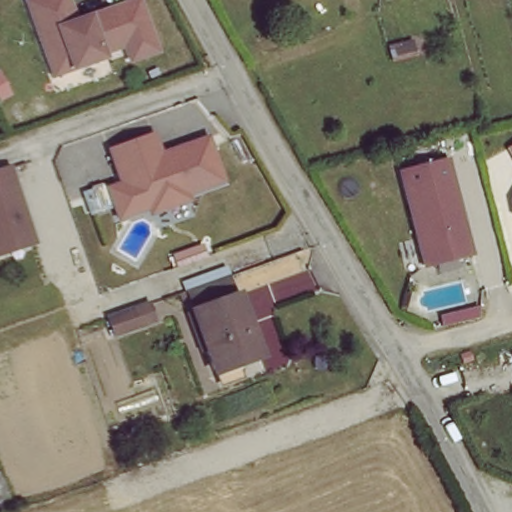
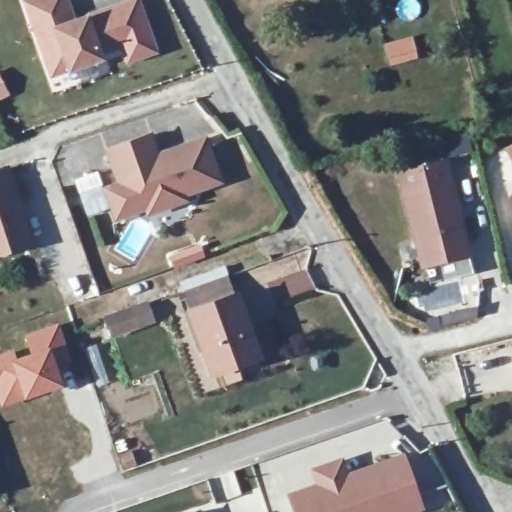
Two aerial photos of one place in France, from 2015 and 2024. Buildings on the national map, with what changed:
unchanged [(48,55),(30,0),(70,0),(76,20),(135,0),(140,0),(155,45),(157,51),(131,59),(129,53),(125,44),(102,52),(103,56),(72,67),(54,73),(48,55)]
unchanged [(117,220),(106,191),(120,186),(107,152),(149,136),(157,156),(167,153),(204,139),(220,181),(184,194),(186,200),(169,206),(149,214),(147,208),(117,220)]
unchanged [(447,160),(470,254),(424,265),(402,171),(447,160)]
unchanged [(0,252),(0,175),(9,172),(33,241),(0,252)]
unchanged [(187,298),(177,276),(225,260),(234,280),(187,298)]
unchanged [(218,371),(195,314),(189,298),(233,283),(239,296),(263,356),(218,371)]
unchanged [(112,339),(104,316),(151,300),(158,325),(112,339)]
new [(16,355),(28,351),(23,335),(58,323),(71,360),(58,365),(64,384),(0,408),(0,352),(13,348),(16,355)]
new [(398,456),(409,486),(345,508),(346,512),(291,512),(286,496),(315,486),(398,456)]
new [(243,495),(260,488),(265,505),(254,508),(255,512),(230,512),(217,476),(234,470),(243,495)]
new [(415,507),(401,512),(346,512),(345,508),(409,486),(415,507)]
new [(202,512),(187,512),(201,507),(202,512)]

